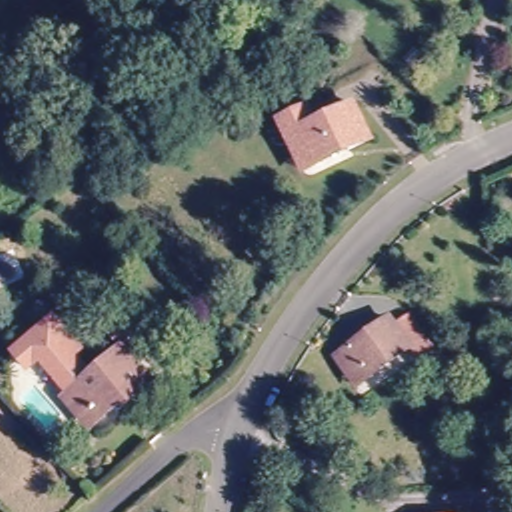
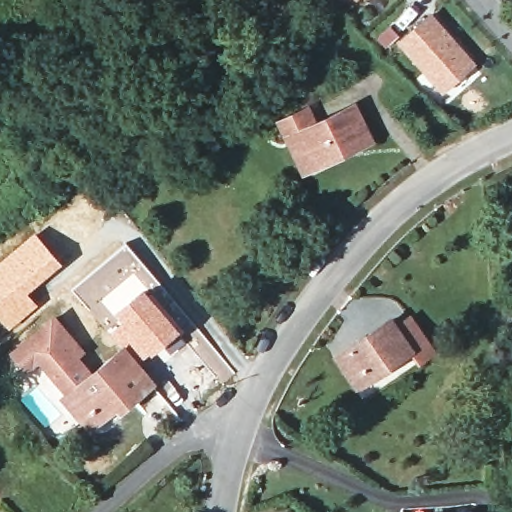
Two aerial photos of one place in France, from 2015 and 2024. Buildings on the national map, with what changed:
new [(354,2),(353,0),(356,0),(354,2)]
new [(475,64),(443,93),(398,43),(432,13),(475,64)]
unchanged [(294,139),(285,121),(312,106),(321,124),(359,103),(376,134),(322,165),(311,172),(294,139)]
new [(62,261),(28,292),(38,304),(8,329),(0,319),(0,259),(34,229),(62,261)]
new [(149,345),(122,316),(120,317),(115,310),(144,287),(179,330),(151,353),(146,347),(149,345)]
unchanged [(386,314),(388,316),(404,307),(429,345),(414,357),(407,346),(353,383),(332,352),(386,314)]
unchanged [(58,391),(38,367),(26,374),(10,353),(57,316),(87,353),(86,353),(81,357),(88,366),(58,391)]
unchanged [(62,393),(75,382),(122,341),(109,327),(122,316),(149,345),(136,357),(153,375),(136,391),(131,386),(102,413),(89,424),(62,393)]

